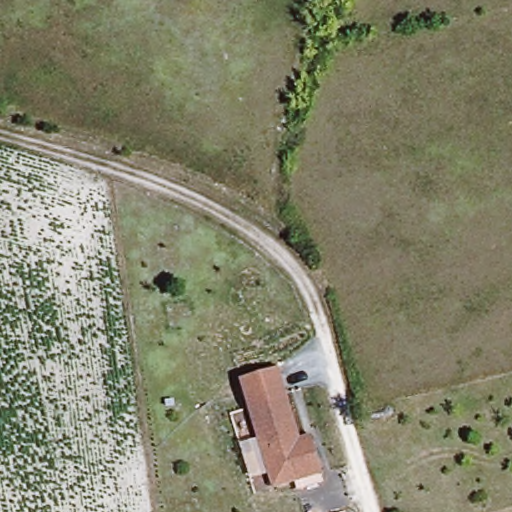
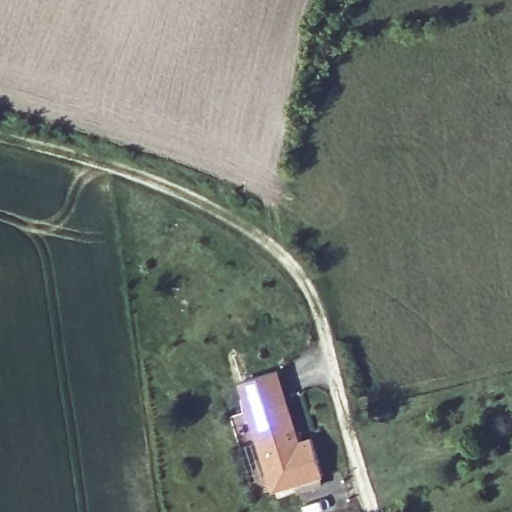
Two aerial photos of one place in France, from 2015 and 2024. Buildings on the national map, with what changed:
unchanged [(240,381),(276,371),(285,400),(247,411),(240,381)]
unchanged [(247,411),(285,400),(297,444),(310,441),(320,477),(271,492),(247,411)]

